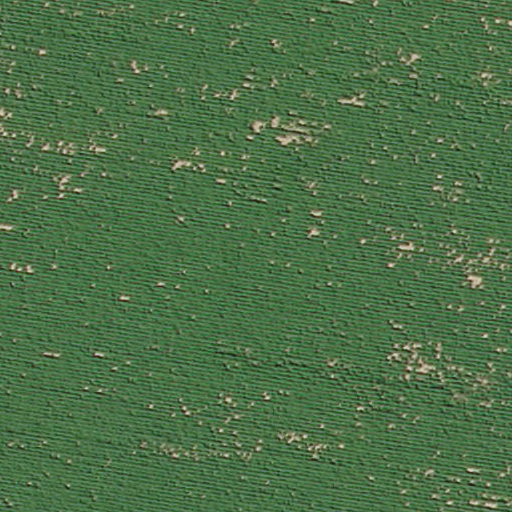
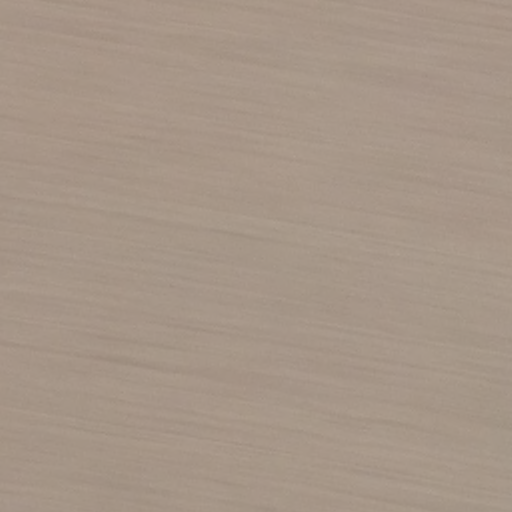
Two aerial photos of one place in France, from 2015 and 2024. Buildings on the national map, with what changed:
[]

